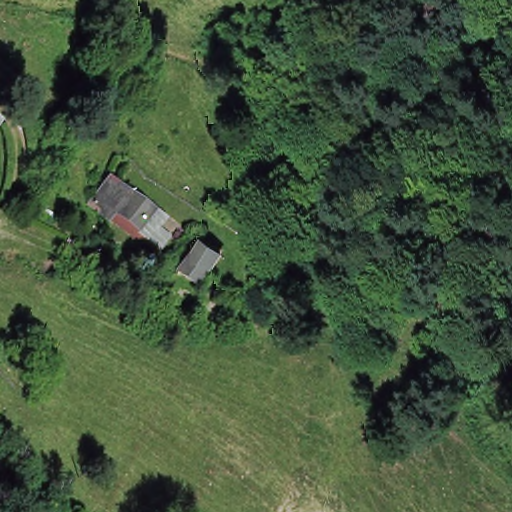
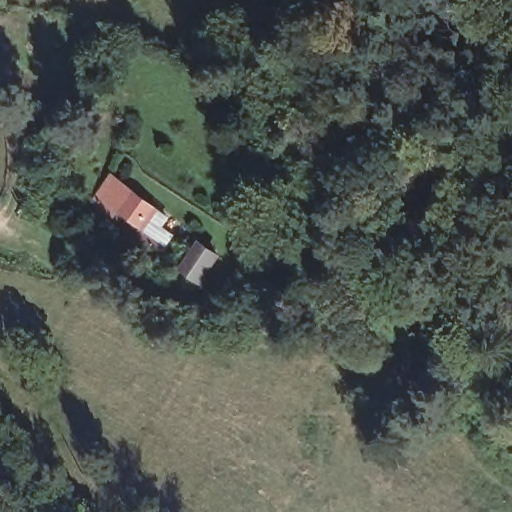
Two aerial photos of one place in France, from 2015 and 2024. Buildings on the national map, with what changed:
unchanged [(114,216),(95,202),(113,175),(132,190),(161,209),(170,215),(165,224),(174,232),(162,251),(114,216)]
unchanged [(217,264),(200,289),(181,274),(197,247),(217,264)]

